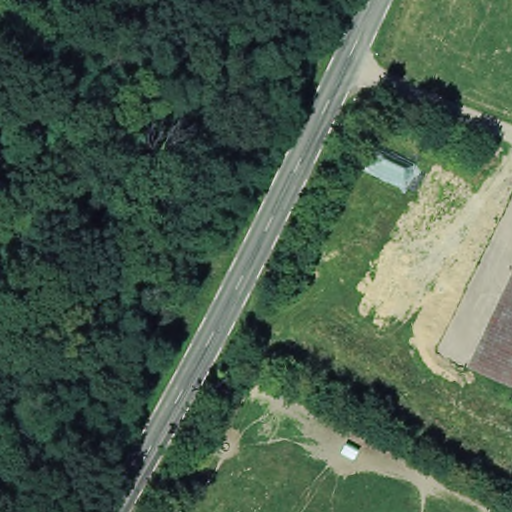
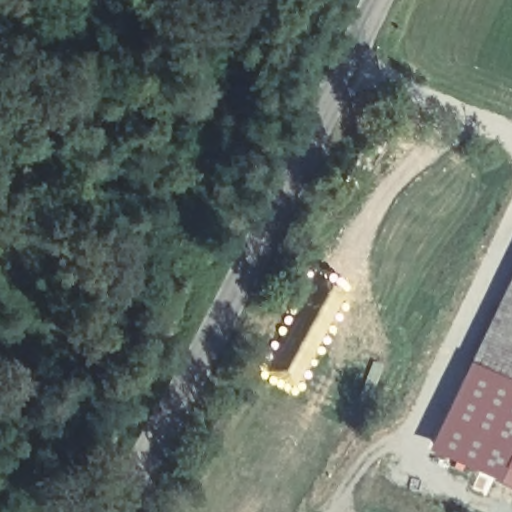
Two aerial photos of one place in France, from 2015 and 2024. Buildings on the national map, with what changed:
new [(476,378),(466,371),(512,272),(512,301),(476,378)]
unchanged [(476,378),(512,301),(512,394),(476,378)]
new [(427,451),(466,371),(476,378),(512,394),(512,491),(427,451)]

